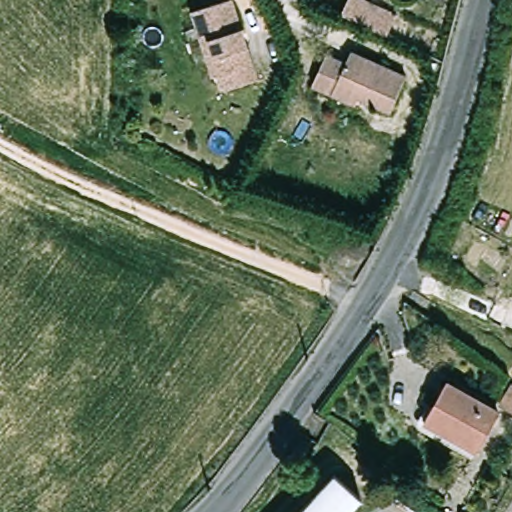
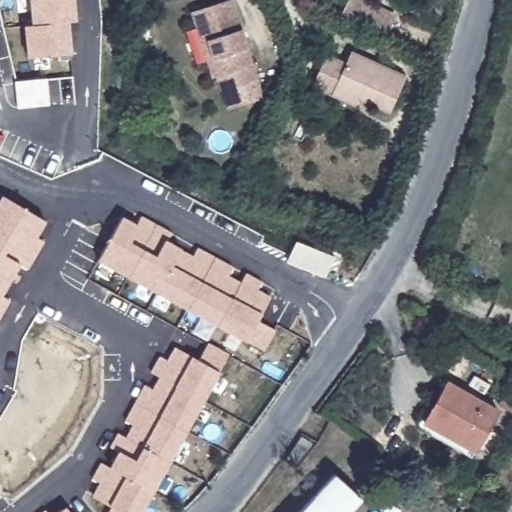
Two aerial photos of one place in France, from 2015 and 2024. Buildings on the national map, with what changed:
new [(31,0),(74,0),(77,20),(72,28),(73,49),(49,51),(50,56),(29,57),(26,27),(34,27),(31,0)]
unchanged [(238,0),(262,78),(226,89),(222,74),(217,76),(212,58),(202,27),(197,9),(225,0),(238,0)]
unchanged [(366,0),(396,14),(387,35),(342,14),(348,0),(366,0)]
unchanged [(338,93),(318,84),(332,53),(351,62),(357,51),(412,76),(395,111),(363,97),(360,104),(338,93)]
new [(46,221),(36,236),(45,241),(27,270),(20,263),(2,295),(10,301),(0,317),(0,197),(2,195),(46,221)]
new [(276,331),(263,351),(173,306),(98,258),(120,217),(138,226),(142,217),(169,230),(165,239),(195,254),(197,249),(232,266),(228,276),(241,282),(245,273),(262,282),(258,291),(271,296),(259,320),(276,331)]
new [(198,360),(208,342),(230,354),(143,512),(107,512),(109,506),(95,497),(100,486),(91,480),(101,463),(110,467),(120,451),(113,447),(117,434),(125,437),(132,427),(125,422),(145,386),(152,390),(157,379),(150,372),(158,355),(167,362),(174,344),(198,360)]
unchanged [(475,454),(424,425),(446,384),(499,413),(475,454)]
unchanged [(508,392),(512,394),(512,415),(500,408),(508,392)]
unchanged [(319,435),(306,427),(315,412),(328,421),(319,435)]
unchanged [(337,474),(362,497),(348,512),(301,512),(337,474)]
new [(66,506),(70,512),(58,512),(66,506)]
new [(46,510),(48,512),(42,512),(46,510)]

